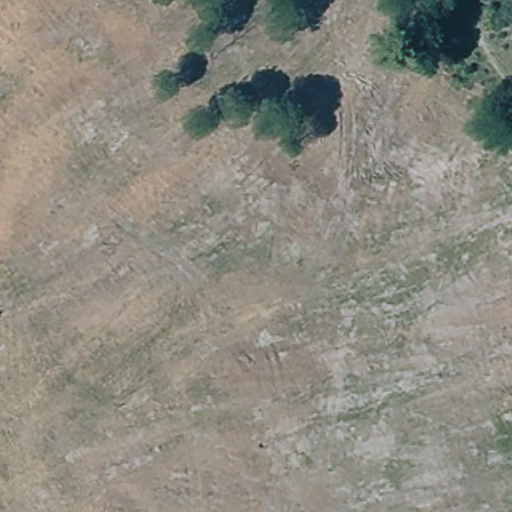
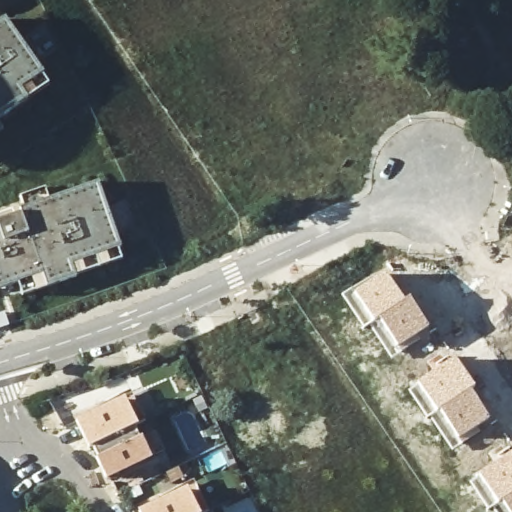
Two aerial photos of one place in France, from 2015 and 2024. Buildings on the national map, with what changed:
new [(49,87),(27,100),(0,119),(0,25),(4,23),(41,75),(49,87)]
new [(2,130),(0,131),(0,127),(2,130)]
new [(97,184),(118,248),(123,262),(75,277),(48,288),(25,298),(17,284),(0,289),(0,221),(22,213),(21,210),(17,198),(45,189),(48,201),(97,184)]
new [(384,273),(404,301),(409,298),(428,328),(397,349),(378,320),(374,322),(354,293),(384,273)]
new [(455,359),(475,388),(470,391),(489,420),(459,439),(439,411),(437,412),(417,383),(455,359)]
new [(138,426),(135,428),(142,439),(154,459),(107,482),(97,459),(91,447),(88,449),(75,421),(119,402),(117,396),(132,390),(147,423),(138,426)]
new [(498,504),(478,474),(512,453),(512,512),(509,512),(502,502),(498,504)]
new [(138,511),(182,493),(181,487),(196,481),(209,512),(139,512),(138,511)]

